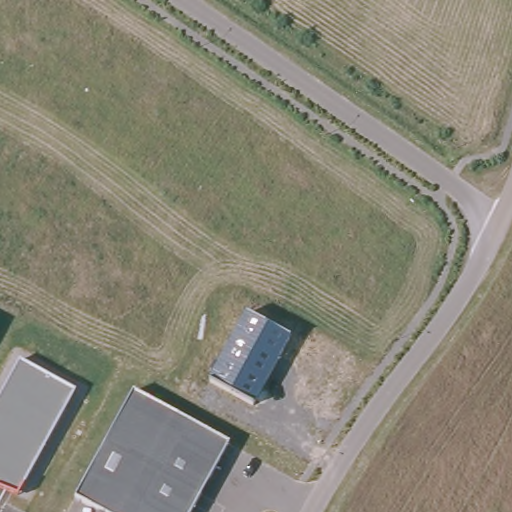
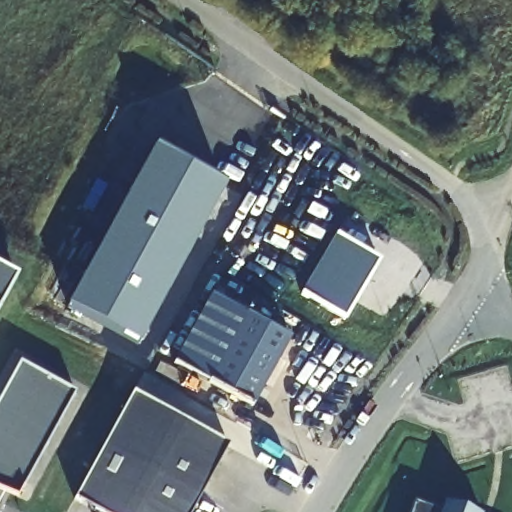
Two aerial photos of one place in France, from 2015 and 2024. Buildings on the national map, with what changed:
new [(153,148),(227,188),(141,346),(67,305),(153,148)]
new [(384,266),(345,324),(300,296),(343,237),(384,266)]
unchanged [(0,312),(0,277),(15,286),(0,312)]
unchanged [(290,339),(254,406),(174,366),(207,303),(290,339)]
unchanged [(0,489),(0,399),(20,363),(75,393),(18,497),(0,489)]
unchanged [(133,394),(228,446),(191,512),(102,512),(76,498),(133,394)]
new [(405,505),(434,512),(403,512),(405,505)]

